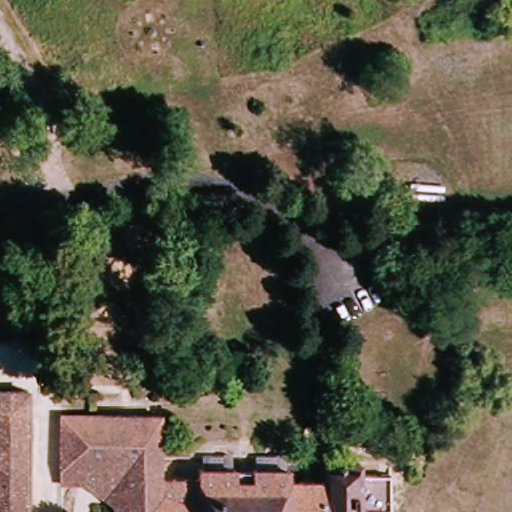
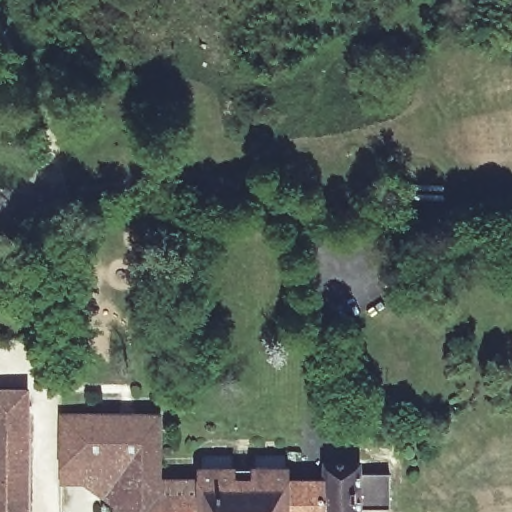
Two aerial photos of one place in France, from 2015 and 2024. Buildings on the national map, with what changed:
unchanged [(0,512),(0,392),(21,392),(23,512),(0,512)]
unchanged [(86,487),(66,485),(66,473),(66,421),(163,421),(164,483),(201,482),(202,468),(206,467),(206,455),(235,456),(236,467),(260,467),(259,455),(288,455),(288,466),(291,466),(292,480),(327,480),(326,463),(363,462),(364,471),(391,471),(391,507),(362,508),(362,512),(119,512),(119,510),(86,487)]

